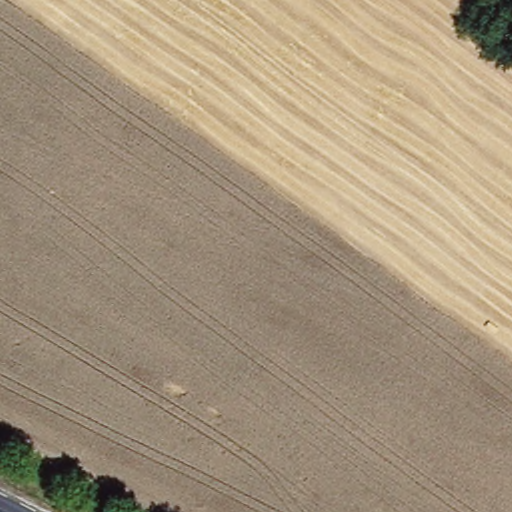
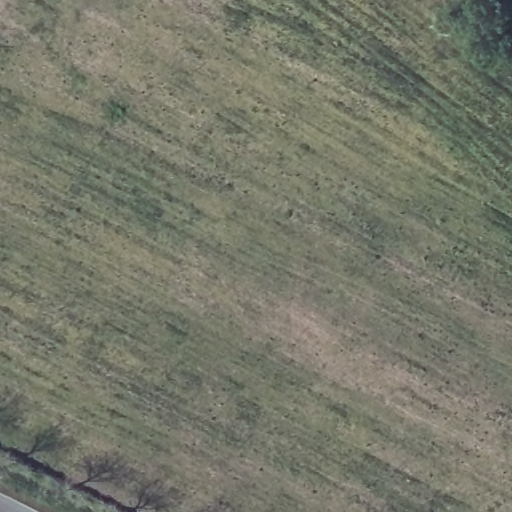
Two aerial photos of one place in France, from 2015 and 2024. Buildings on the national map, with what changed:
[]

